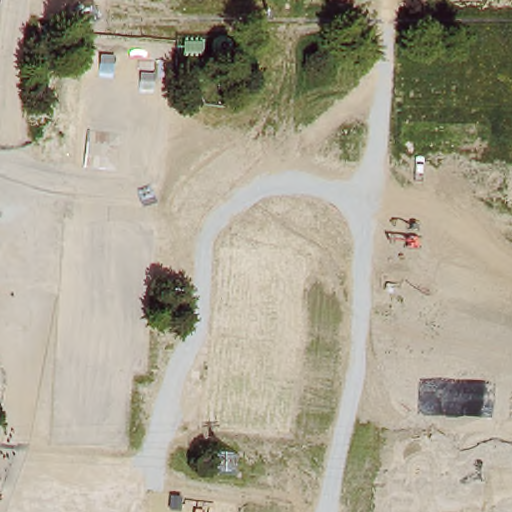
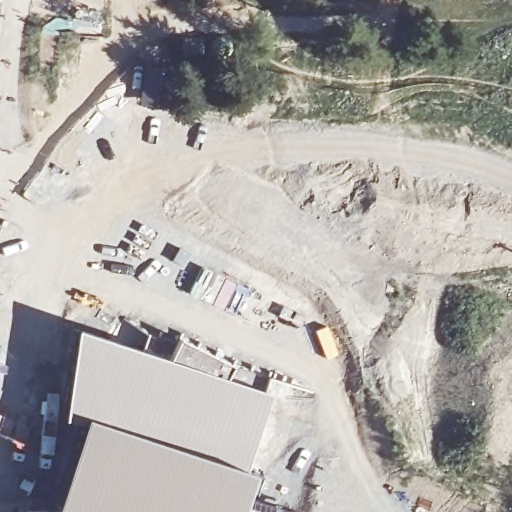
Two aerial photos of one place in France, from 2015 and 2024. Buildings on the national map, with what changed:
new [(239,512),(54,512),(84,419),(65,412),(74,331),(269,390),(239,512)]

